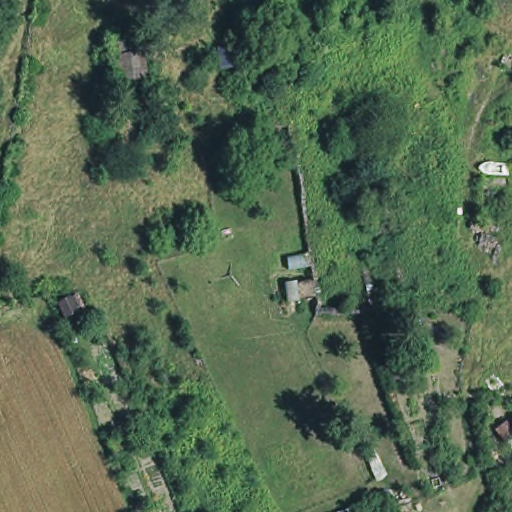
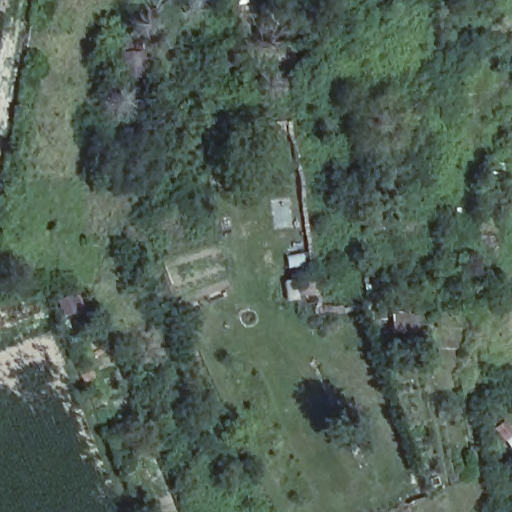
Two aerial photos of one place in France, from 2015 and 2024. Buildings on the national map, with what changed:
unchanged [(116,80),(115,74),(114,55),(112,41),(136,37),(137,52),(139,71),(140,77),(116,80)]
unchanged [(400,264),(468,263),(470,296),(406,300),(400,264)]
unchanged [(291,277),(294,295),(283,297),(280,279),(291,277)]
unchanged [(103,441),(117,435),(123,448),(110,455),(103,441)]

